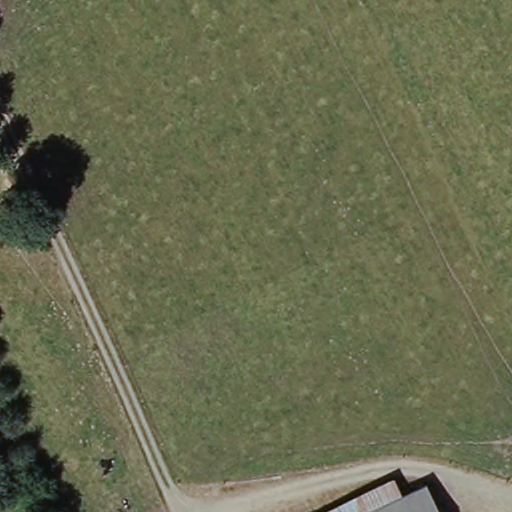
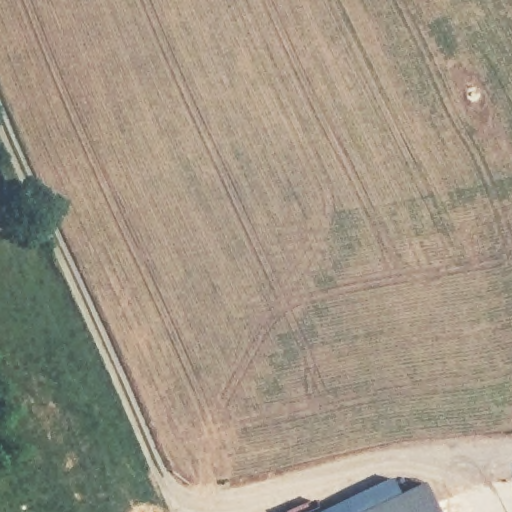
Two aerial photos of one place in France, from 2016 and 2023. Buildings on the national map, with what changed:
unchanged [(400,488),(409,507),(397,512),(350,512),(400,488)]
unchanged [(409,507),(433,495),(441,512),(397,512),(409,507)]

